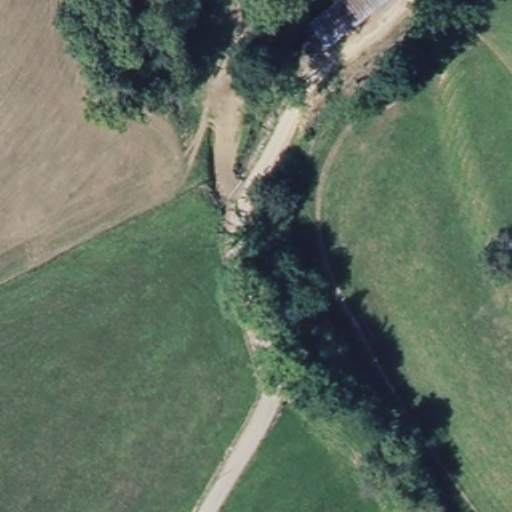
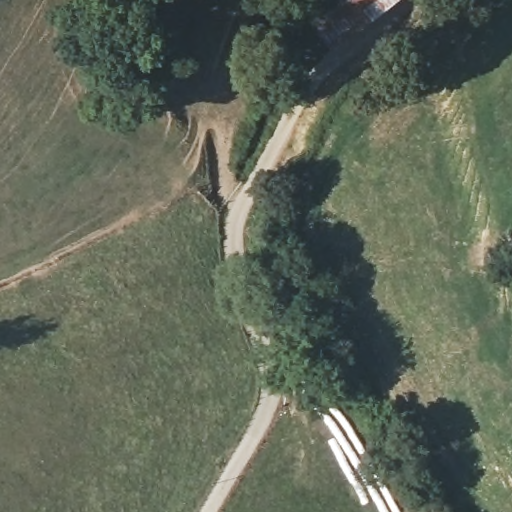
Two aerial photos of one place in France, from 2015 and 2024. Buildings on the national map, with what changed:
unchanged [(308,14),(327,0),(388,0),(326,46),(308,14)]

